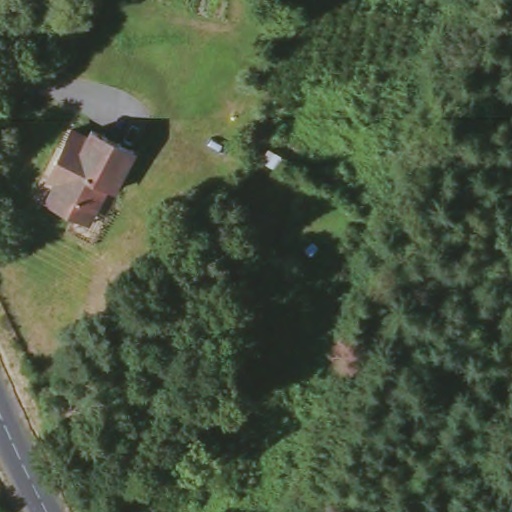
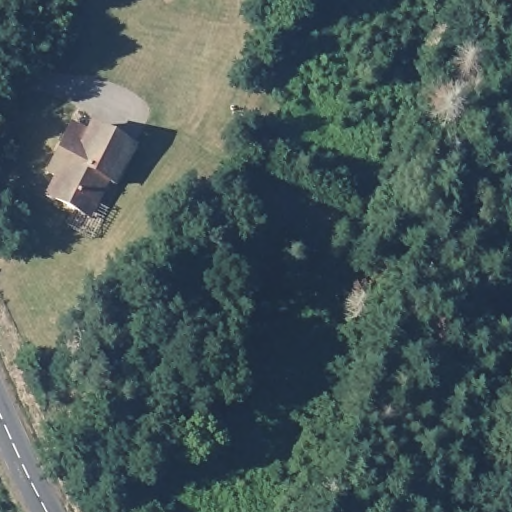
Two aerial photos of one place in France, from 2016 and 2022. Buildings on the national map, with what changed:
unchanged [(85,215),(50,202),(56,180),(47,177),(52,160),(59,162),(62,150),(57,148),(64,126),(81,130),(83,125),(127,137),(114,180),(107,180),(99,206),(95,219),(85,215)]

